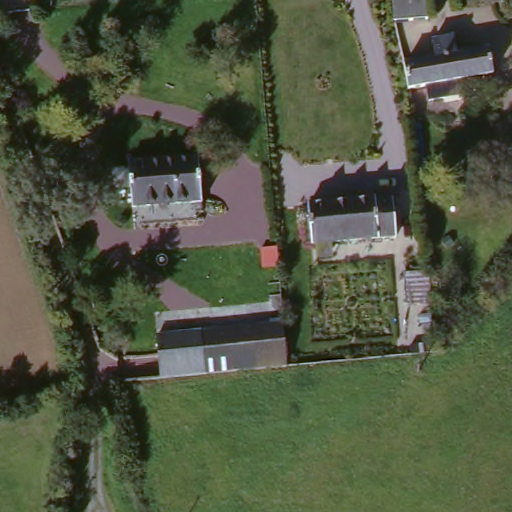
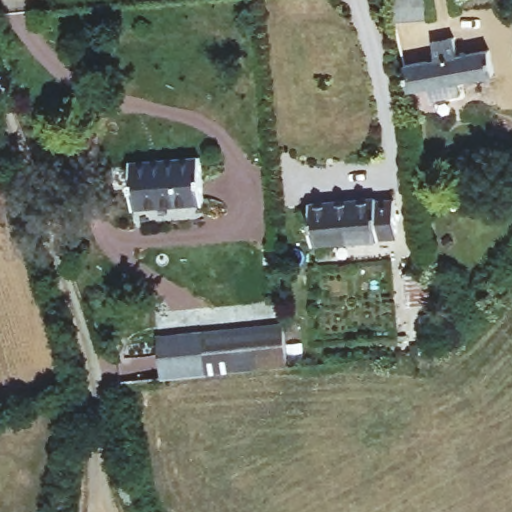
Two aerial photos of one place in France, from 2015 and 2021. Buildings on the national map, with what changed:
unchanged [(425,18),(393,22),(391,0),(422,0),(425,18)]
unchanged [(478,7),(446,11),(446,0),(477,0),(478,7)]
unchanged [(494,1),(494,0),(503,0),(494,1)]
unchanged [(400,69),(427,64),(425,49),(452,46),(453,60),(484,57),(487,81),(401,91),(400,69)]
unchanged [(194,204),(133,210),(127,167),(190,161),(194,204)]
unchanged [(391,236),(310,245),(303,209),(367,201),(370,207),(388,205),(391,236)]
unchanged [(154,377),(154,332),(278,331),(282,380),(154,377)]

